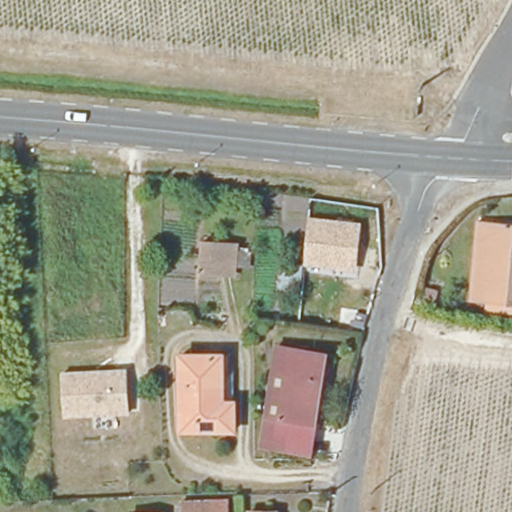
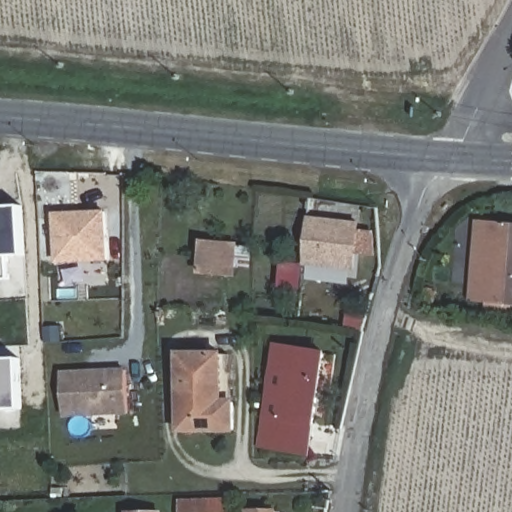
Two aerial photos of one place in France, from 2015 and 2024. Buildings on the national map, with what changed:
new [(8,276),(0,277),(0,208),(21,206),(25,254),(7,255),(8,276)]
new [(54,263),(52,212),(106,210),(108,260),(54,263)]
unchanged [(356,270),(303,265),(309,216),(363,221),(356,270)]
unchanged [(487,223),(512,225),(512,306),(481,303),(487,223)]
unchanged [(202,279),(204,245),(223,245),(230,245),(230,279),(222,279),(202,279)]
unchanged [(300,294),(278,292),(280,263),(302,265),(300,294)]
unchanged [(438,299),(425,295),(428,285),(440,288),(438,299)]
unchanged [(175,433),(178,352),(208,353),(205,434),(175,433)]
unchanged [(208,353),(223,353),(220,406),(245,407),(245,434),(205,434),(208,353)]
unchanged [(263,435),(265,420),(277,355),(319,361),(308,427),(305,443),(263,435)]
new [(18,361),(21,409),(0,410),(0,362),(18,361)]
unchanged [(128,414),(64,416),(62,371),(127,368),(128,414)]
unchanged [(227,500),(227,512),(181,512),(181,501),(227,500)]

